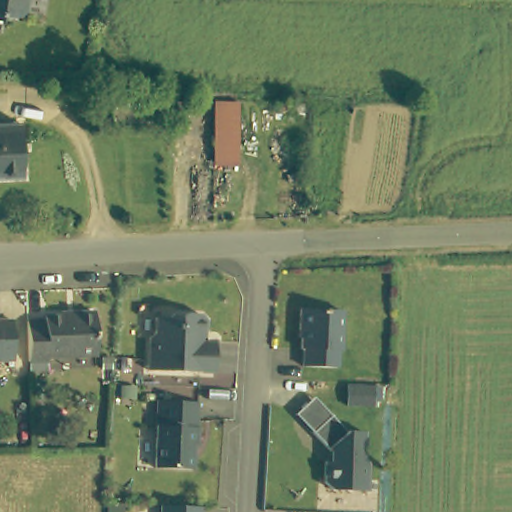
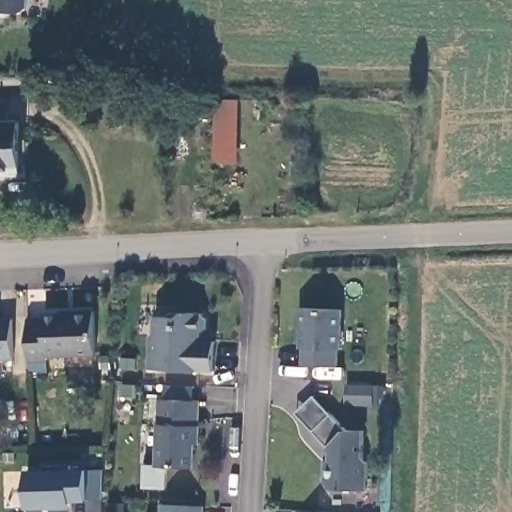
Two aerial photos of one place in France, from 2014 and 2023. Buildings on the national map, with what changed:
unchanged [(36,9),(28,16),(0,14),(0,0),(38,0),(36,9)]
unchanged [(213,168),(214,100),(237,101),(238,169),(213,168)]
unchanged [(0,173),(0,119),(14,119),(13,174),(0,173)]
unchanged [(57,319),(56,312),(91,308),(96,353),(44,358),(44,365),(28,367),(26,322),(57,319)]
unchanged [(343,312),(341,352),(339,352),(338,370),(304,368),(305,351),(302,350),(303,332),(301,331),(302,310),(343,312)]
unchanged [(156,332),(157,317),(180,318),(185,314),(204,315),(208,320),(208,330),(202,335),(202,342),(216,343),(214,373),(149,370),(151,337),(156,332)]
unchanged [(0,357),(0,316),(5,315),(11,356),(0,357)]
unchanged [(365,382),(390,384),(389,398),(364,397),(365,382)]
unchanged [(198,403),(197,428),(198,428),(197,447),(193,447),(191,470),(154,468),(158,401),(198,403)]
unchanged [(365,435),(365,461),(370,466),(370,494),(335,493),(327,486),(327,465),(332,465),(332,455),(315,436),(298,418),(316,401),(333,419),(348,435),(365,435)]
new [(88,500),(71,500),(71,512),(52,512),(52,506),(29,507),(26,472),(87,470),(88,500)]
unchanged [(203,508),(203,512),(163,512),(163,508),(203,508)]

